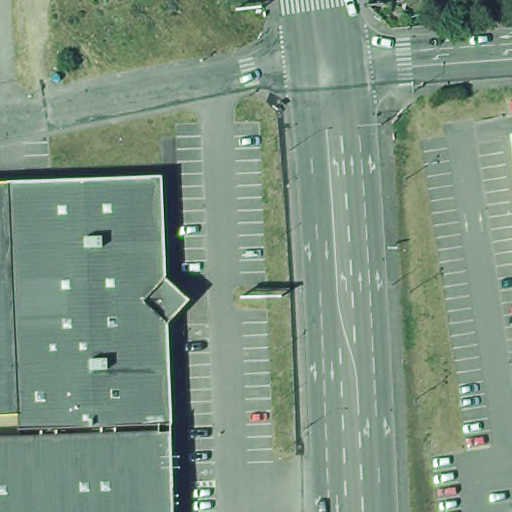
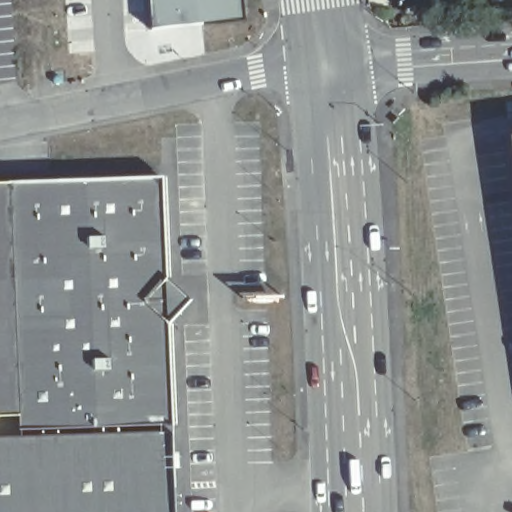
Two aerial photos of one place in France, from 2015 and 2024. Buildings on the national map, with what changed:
new [(201,25),(200,15),(186,16),(153,30),(150,0),(241,0),(244,21),(201,25)]
unchanged [(511,130),(512,130),(512,137),(511,130)]
unchanged [(12,185),(163,177),(172,423),(23,428),(22,416),(12,185)]
unchanged [(0,183),(12,182),(12,185),(22,416),(0,416),(0,183)]
unchanged [(176,512),(0,512),(0,438),(173,432),(176,512)]

